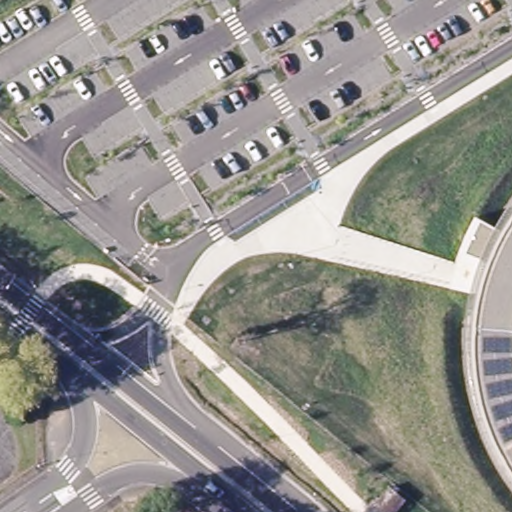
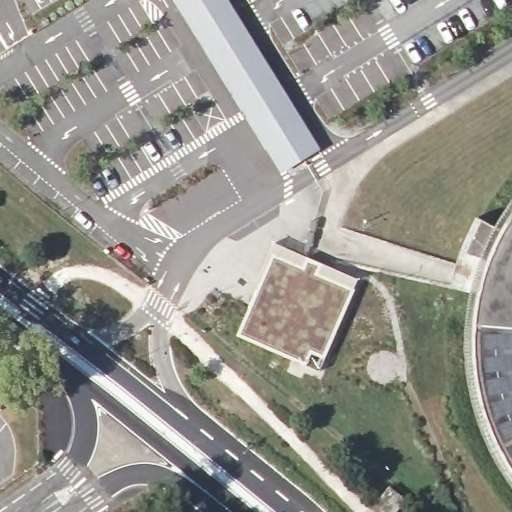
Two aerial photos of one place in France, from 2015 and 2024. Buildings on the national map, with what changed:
new [(320,150),(281,174),(222,82),(172,0),(228,0),(320,150)]
demolished [(0,126),(0,121),(29,104),(46,130),(14,150),(0,126)]
unchanged [(509,488),(494,464),(484,444),(474,420),(466,392),(462,363),(461,337),(463,314),(467,290),(449,288),(456,263),(464,239),(474,217),(494,225),(509,201),(512,197),(512,492),(509,488)]
new [(259,282),(274,242),(359,279),(319,371),(236,335),(259,282)]
unchanged [(407,502),(400,512),(387,512),(380,507),(391,489),(392,488),(403,498),(407,502)]

